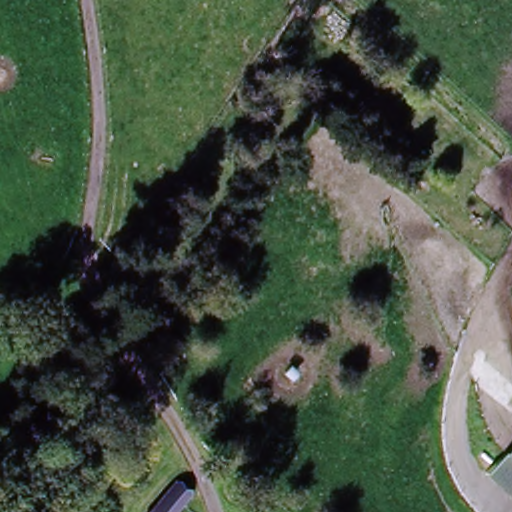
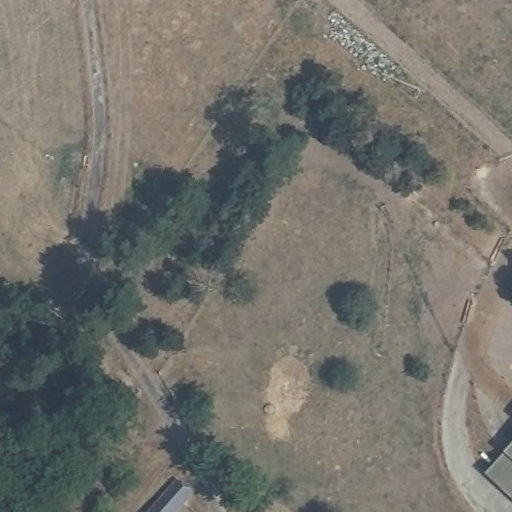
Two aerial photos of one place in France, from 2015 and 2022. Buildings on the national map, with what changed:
unchanged [(512,447),(512,500),(486,476),(512,447)]
unchanged [(184,496),(170,512),(142,512),(168,482),(184,496)]

